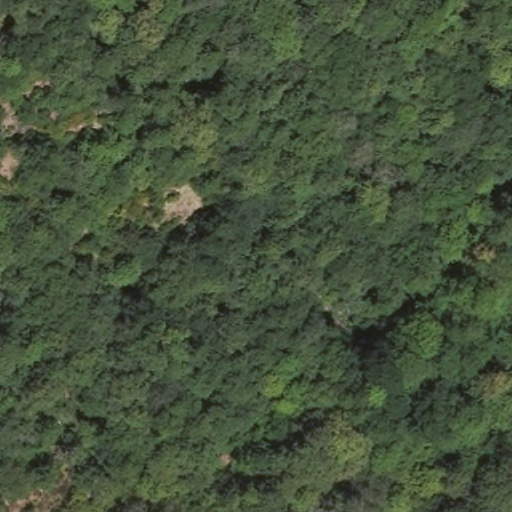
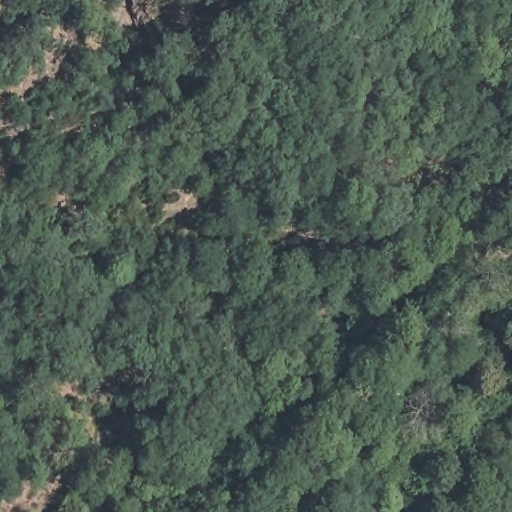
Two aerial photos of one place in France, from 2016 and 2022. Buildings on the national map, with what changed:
unchanged [(366,368),(327,328),(353,304),(381,330),(396,342),(366,368)]

